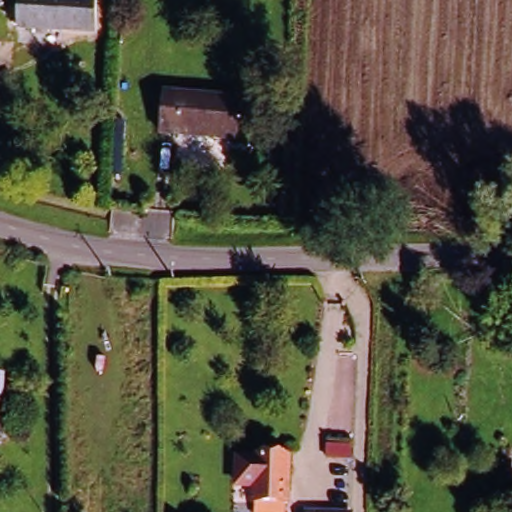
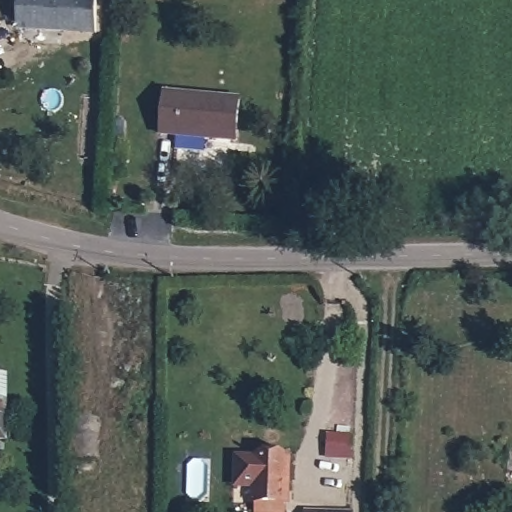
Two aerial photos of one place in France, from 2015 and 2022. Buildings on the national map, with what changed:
unchanged [(83,0),(101,2),(97,39),(18,30),(21,0),(83,0)]
unchanged [(168,91),(243,98),(241,137),(165,131),(168,91)]
unchanged [(5,379),(0,441),(0,379),(5,379)]
unchanged [(264,503),(261,503),(262,487),(247,486),(242,482),(243,460),(248,455),(297,457),(295,503),(293,503),(293,512),(264,512),(264,503)]
unchanged [(313,511),(335,512),(313,512),(313,511)]

